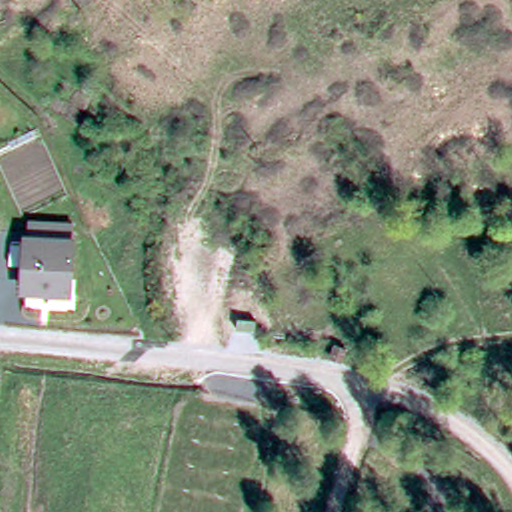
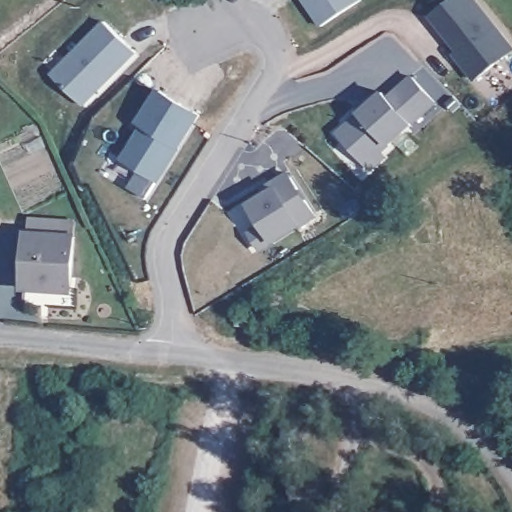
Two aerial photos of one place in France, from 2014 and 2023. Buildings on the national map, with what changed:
new [(360,5),(321,30),(302,0),(301,0),(358,0),(360,5)]
new [(457,51),(430,15),(451,0),(478,0),(512,46),(512,51),(473,81),(453,54),(457,51)]
new [(137,53),(85,107),(52,75),(104,21),(137,53)]
new [(372,167),(363,159),(340,131),(363,110),(360,107),(372,95),(375,99),(385,90),(390,96),(413,75),(437,100),(381,151),(385,155),(372,167)]
new [(145,129),(141,126),(160,95),(199,120),(147,202),(129,191),(140,173),(124,163),(145,129)]
new [(288,173),(317,219),(302,225),(274,242),(260,252),(248,233),(261,225),(248,203),(263,194),(260,188),(288,173)]
unchanged [(71,290),(24,287),(28,234),(30,234),(30,217),(75,222),(73,237),(75,237),(71,290)]

